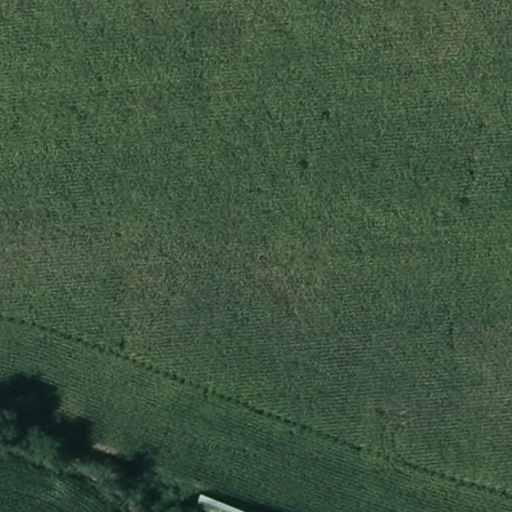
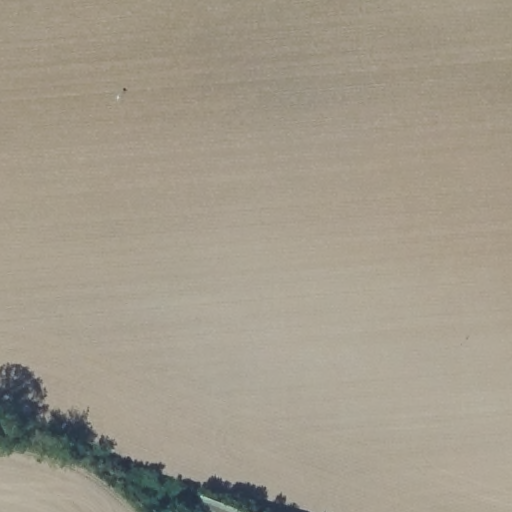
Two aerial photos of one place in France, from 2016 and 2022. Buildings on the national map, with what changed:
unchanged [(206,491),(262,512),(197,512),(206,491)]

